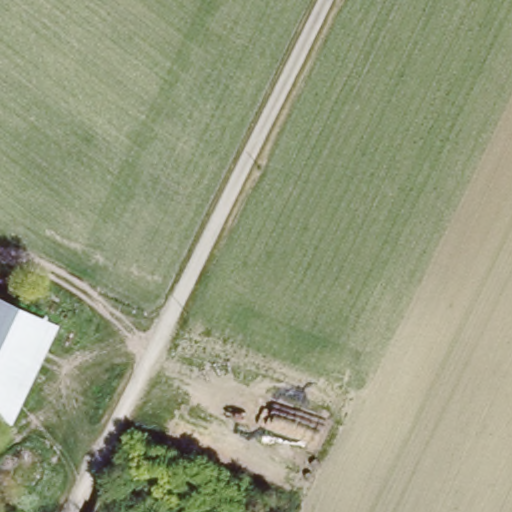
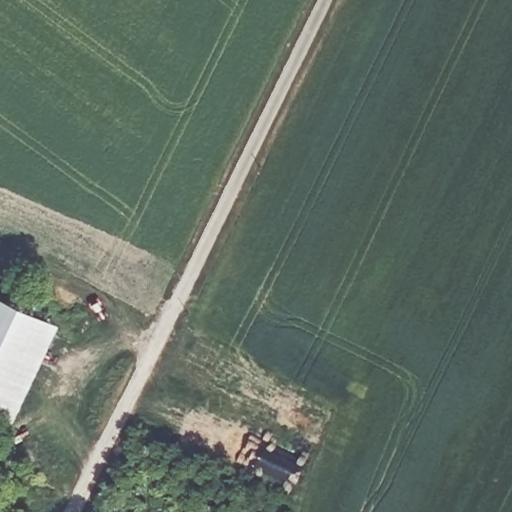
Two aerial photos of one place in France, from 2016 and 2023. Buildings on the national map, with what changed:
unchanged [(0,417),(0,300),(56,327),(12,422),(0,417)]

